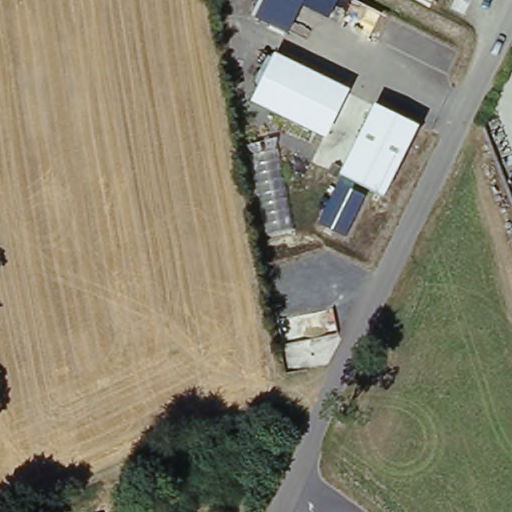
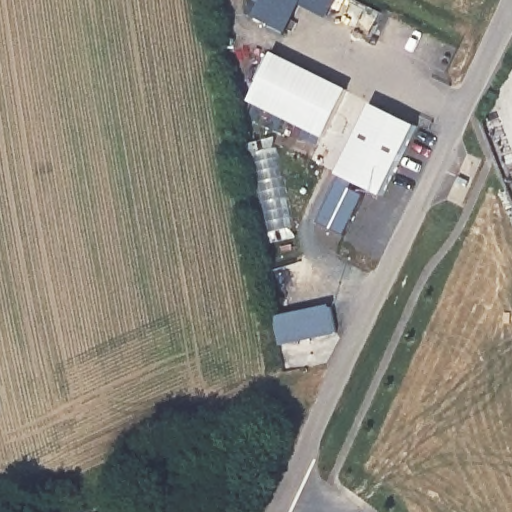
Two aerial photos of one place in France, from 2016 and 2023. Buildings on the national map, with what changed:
unchanged [(264,0),(338,0),(329,20),(301,7),(288,34),(255,18),(264,0)]
unchanged [(274,54),(348,89),(325,137),(250,100),(274,54)]
unchanged [(340,174),(373,104),(416,126),(384,194),(354,180),(350,189),(364,195),(344,235),(316,222),(340,174)]
new [(339,334),(283,345),(277,316),(331,304),(339,334)]

